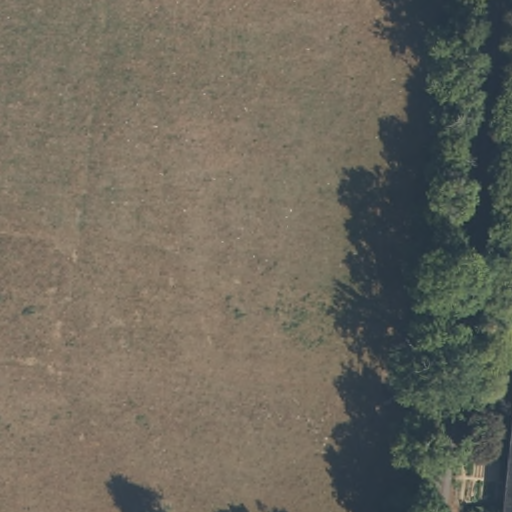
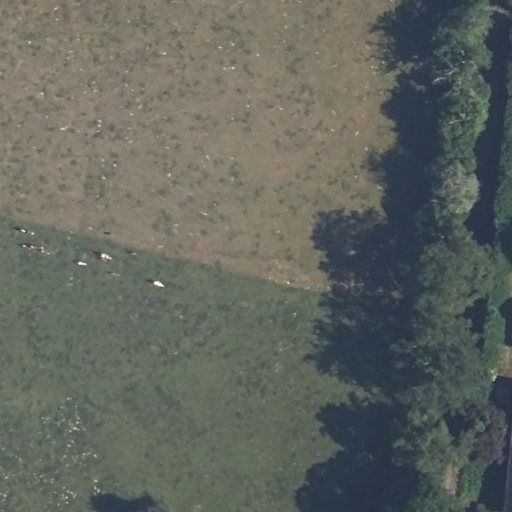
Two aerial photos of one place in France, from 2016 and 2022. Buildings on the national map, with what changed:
unchanged [(505,507),(512,432),(512,507),(505,507)]

